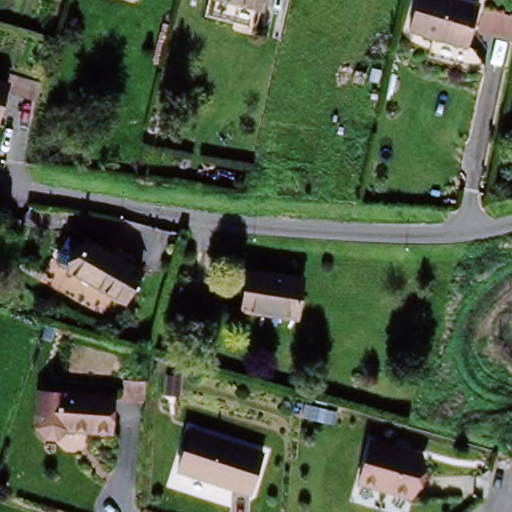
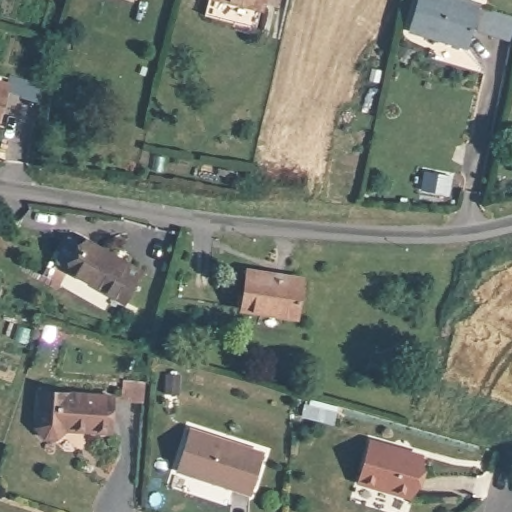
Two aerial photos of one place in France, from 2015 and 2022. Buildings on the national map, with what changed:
unchanged [(227,0),(263,0),(261,9),(227,0)]
unchanged [(470,5),(460,43),(407,30),(414,0),(449,0),(470,5)]
unchanged [(511,15),(503,41),(469,34),(477,6),(511,15)]
unchanged [(0,101),(0,75),(5,76),(0,101)]
unchanged [(63,275),(85,239),(146,271),(122,309),(63,275)]
unchanged [(237,314),(244,268),(306,275),(298,321),(237,314)]
unchanged [(53,444),(40,442),(33,434),(37,398),(110,399),(108,433),(64,432),(53,444)]
unchanged [(245,493),(175,469),(188,428),(259,452),(245,493)]
unchanged [(355,482),(365,443),(415,457),(405,495),(355,482)]

